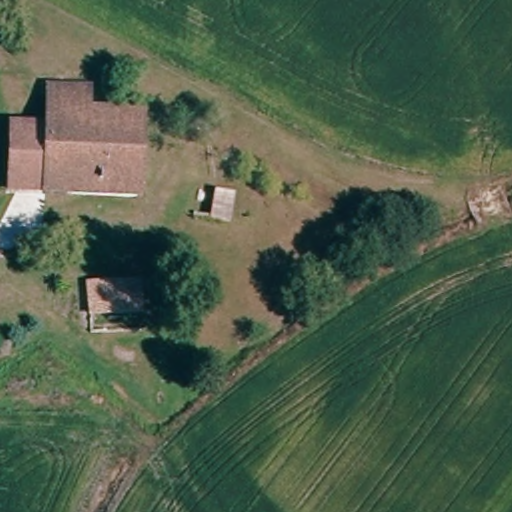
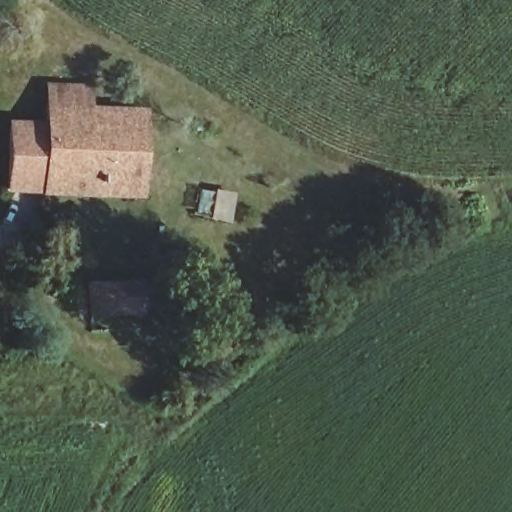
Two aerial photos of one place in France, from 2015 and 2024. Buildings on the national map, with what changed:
unchanged [(140,200),(8,193),(10,123),(47,124),(49,85),(92,87),(91,108),(144,111),(140,200)]
unchanged [(229,224),(192,211),(200,187),(237,199),(229,224)]
unchanged [(158,328),(81,331),(79,287),(157,283),(158,328)]

